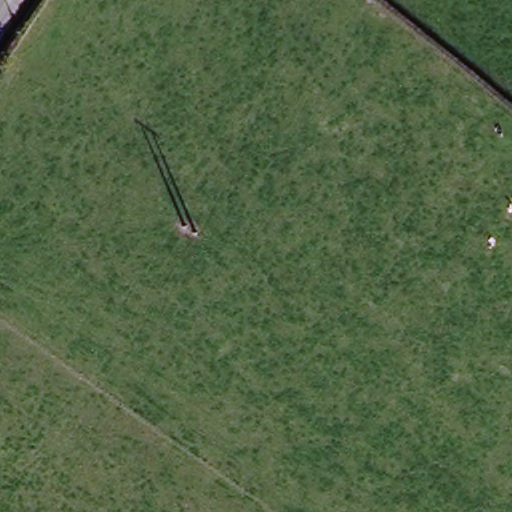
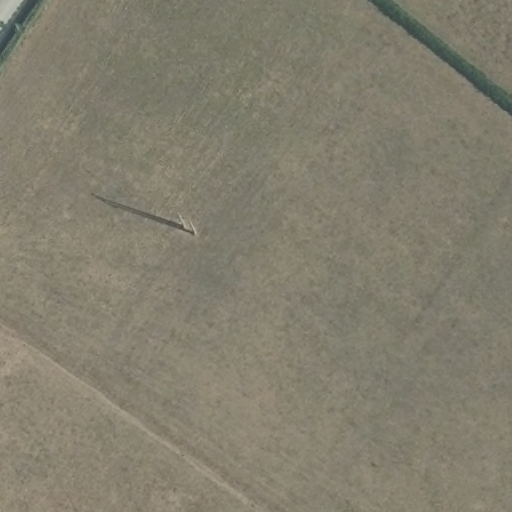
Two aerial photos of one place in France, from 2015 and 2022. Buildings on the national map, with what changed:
[]

